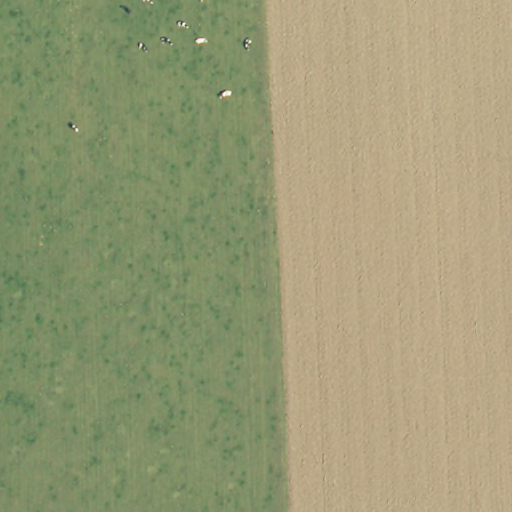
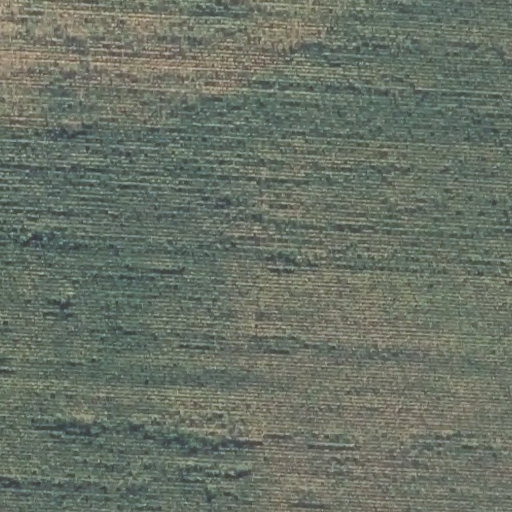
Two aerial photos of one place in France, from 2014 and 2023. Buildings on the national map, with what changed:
[]

